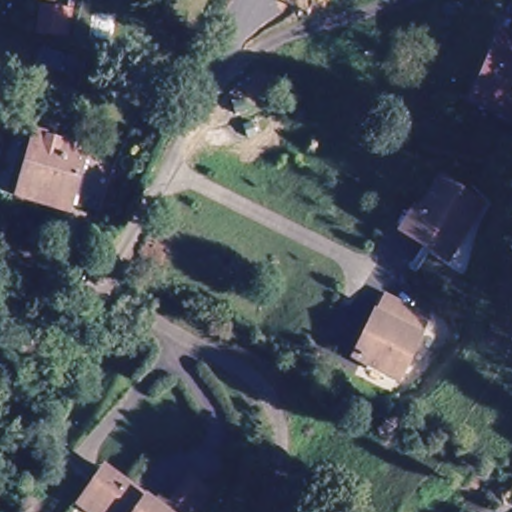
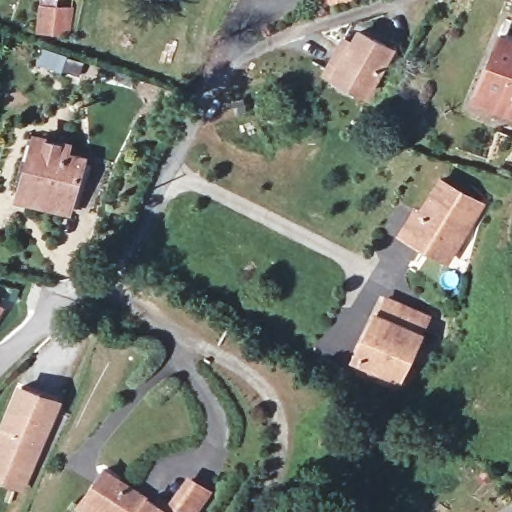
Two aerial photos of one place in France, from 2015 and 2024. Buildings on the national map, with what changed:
new [(339,45),(347,50),(357,32),(389,49),(366,93),(325,71),(339,45)]
unchanged [(512,41),(512,108),(507,119),(471,105),(499,36),(512,41)]
unchanged [(63,154),(79,159),(66,207),(18,193),(35,137),(65,147),(63,154)]
unchanged [(440,180),(480,206),(445,260),(406,235),(436,186),(440,180)]
unchanged [(399,381),(356,361),(385,300),(428,320),(399,381)]
new [(4,305),(0,312),(0,303),(4,305)]
new [(63,401),(24,493),(0,483),(0,426),(18,382),(63,401)]
unchanged [(86,497),(105,470),(161,512),(89,512),(80,505),(86,497)]
unchanged [(192,484),(193,485),(209,496),(198,512),(172,512),(192,484)]

